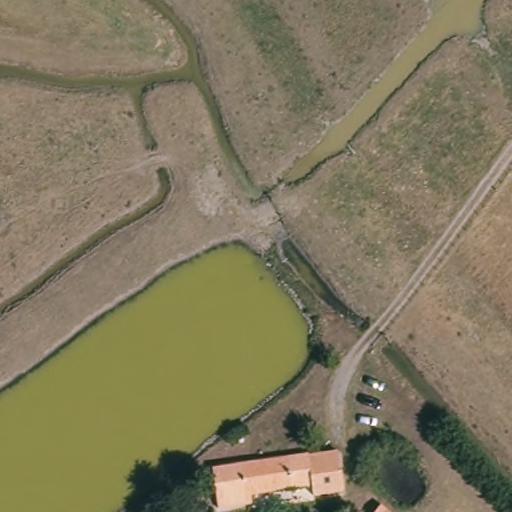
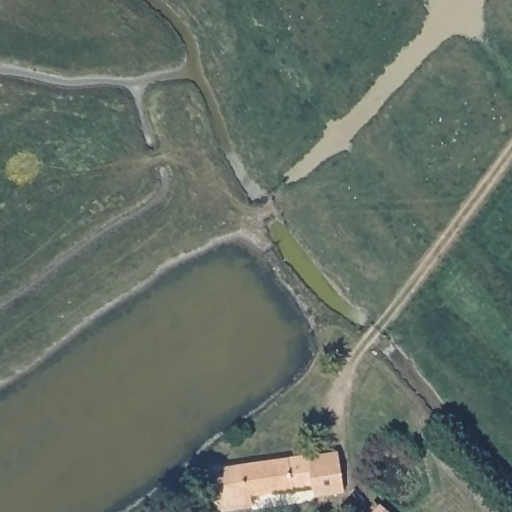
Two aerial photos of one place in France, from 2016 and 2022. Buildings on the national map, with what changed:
unchanged [(327,453),(331,486),(253,497),(255,507),(218,512),(215,469),(327,453)]

